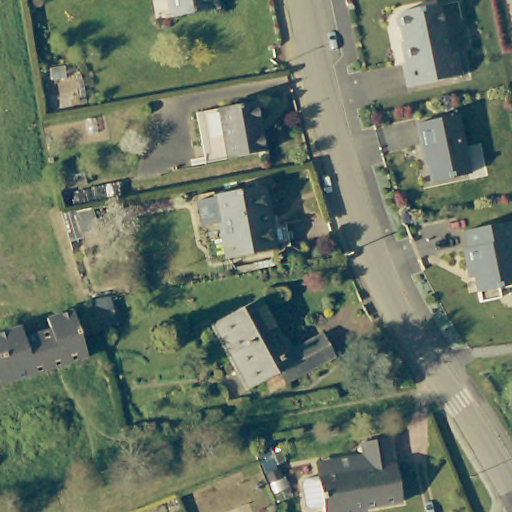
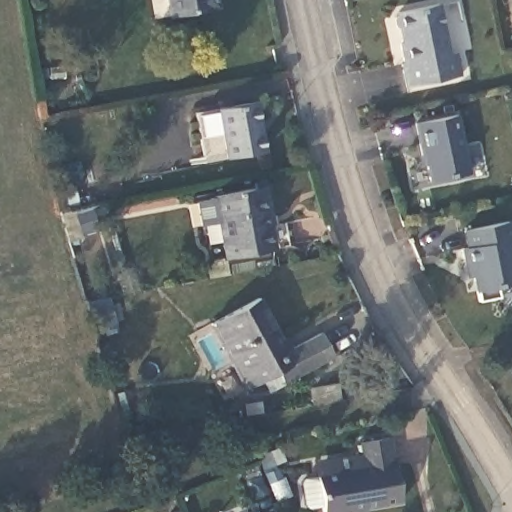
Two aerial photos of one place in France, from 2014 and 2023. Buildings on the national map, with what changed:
unchanged [(165,0),(215,0),(216,6),(167,14),(165,0)]
unchanged [(455,46),(460,68),(405,79),(401,56),(403,55),(400,36),(405,35),(402,22),(397,19),(395,9),(398,4),(417,0),(438,0),(447,47),(455,46)]
unchanged [(221,110),(255,105),(264,156),(229,161),(221,110)]
unchanged [(467,166),(428,174),(423,146),(420,147),(414,115),(455,107),(467,166)]
unchanged [(211,198),(260,189),(271,250),(222,259),(211,198)]
unchanged [(512,284),(498,287),(500,297),(480,300),(473,263),(468,264),(465,247),(470,246),(466,229),(510,221),(512,229),(512,284)]
unchanged [(266,374),(250,383),(215,321),(266,293),(294,342),(320,328),(333,353),(292,376),(273,386),(266,374)]
unchanged [(112,298),(118,323),(95,328),(87,303),(112,298)]
demolished [(0,336),(21,329),(25,341),(44,335),(51,332),(47,321),(76,312),(84,335),(85,337),(91,357),(55,369),(15,382),(0,387),(0,336)]
unchanged [(342,512),(326,512),(317,466),(365,457),(361,436),(386,431),(398,495),(341,506),(342,512)]

